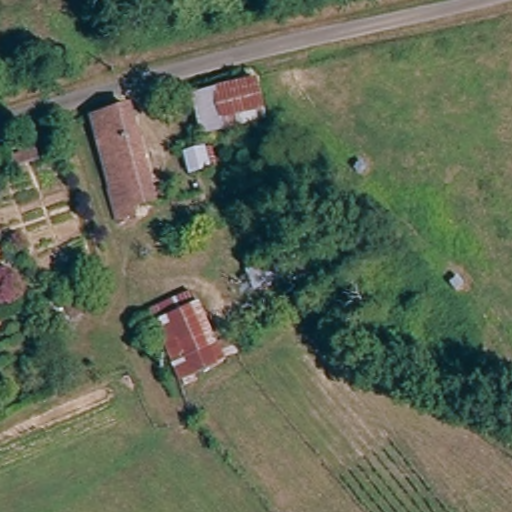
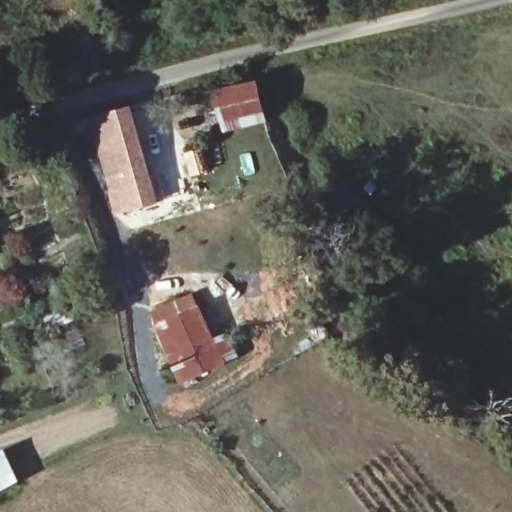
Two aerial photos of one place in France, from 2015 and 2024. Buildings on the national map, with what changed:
unchanged [(257,85),(265,123),(203,136),(195,98),(257,85)]
unchanged [(133,103),(156,198),(135,205),(139,221),(121,226),(119,220),(109,189),(113,188),(93,115),(133,103)]
unchanged [(223,146),(228,165),(191,175),(186,156),(223,146)]
unchanged [(286,213),(291,230),(264,237),(260,220),(286,213)]
unchanged [(273,263),(281,283),(256,294),(248,273),(273,263)]
unchanged [(225,362),(182,382),(156,326),(149,311),(192,291),(199,306),(213,335),(227,329),(238,352),(224,359),(225,362)]
new [(0,492),(0,452),(5,449),(20,480),(0,492)]

